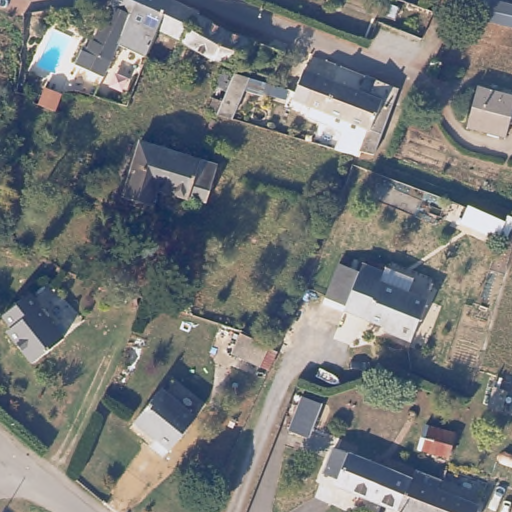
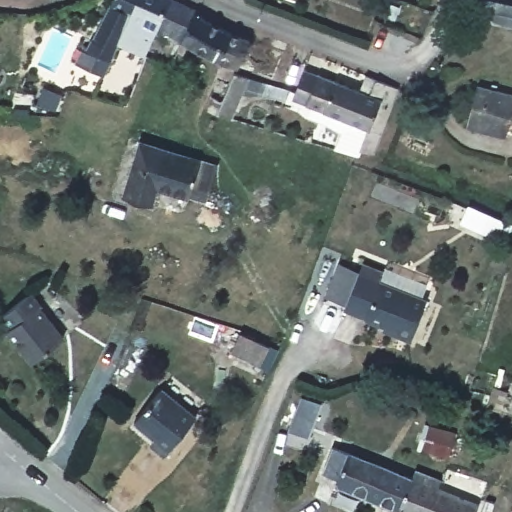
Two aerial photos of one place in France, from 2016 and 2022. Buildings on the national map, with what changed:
unchanged [(135,56),(124,50),(135,23),(120,16),(95,71),(69,60),(77,43),(83,46),(102,0),(159,0),(147,30),(135,56)]
unchanged [(188,9),(173,40),(147,30),(159,0),(175,0),(189,6),(188,9)]
unchanged [(188,9),(223,26),(241,32),(230,64),(217,60),(205,54),(203,56),(173,40),(188,9)]
unchanged [(240,75),(257,81),(253,93),(235,86),(222,116),(208,111),(201,108),(204,99),(199,95),(213,68),(225,75),(227,69),(240,75)]
unchanged [(366,89),(371,73),(404,85),(380,151),(366,146),(363,154),(354,151),(349,150),(345,149),(350,131),(335,123),(316,116),(319,106),(300,99),(303,90),(303,89),(310,68),(366,89)]
unchanged [(67,88),(67,89),(60,102),(45,94),(52,80),(67,88)]
unchanged [(512,97),(508,109),(512,110),(512,119),(511,122),(503,120),(498,135),(463,124),(476,83),(512,95),(512,97)]
unchanged [(207,156),(198,192),(179,187),(179,190),(147,182),(142,199),(114,190),(128,134),(207,156)]
unchanged [(492,220),(489,230),(472,225),(471,227),(462,224),(466,211),(492,220)]
unchanged [(407,325),(409,321),(377,311),(356,304),(357,300),(336,293),(346,258),(368,265),(370,257),(393,263),(390,273),(437,288),(423,329),(407,325)]
unchanged [(33,304),(31,306),(60,334),(31,363),(2,335),(7,330),(0,323),(0,316),(22,293),(33,304)]
unchanged [(273,347),(265,366),(237,354),(245,335),(273,347)]
unchanged [(512,395),(508,408),(494,404),(504,371),(512,373),(512,395)]
unchanged [(190,411),(160,452),(147,442),(151,437),(129,420),(155,385),(190,411)]
unchanged [(320,403),(309,434),(290,427),(301,396),(320,403)]
unchanged [(456,432),(448,455),(417,443),(425,421),(456,432)]
unchanged [(400,509),(331,482),(333,475),(319,469),(330,443),(412,476),(400,509)]
unchanged [(417,465),(445,475),(441,486),(478,501),(474,512),(409,512),(400,509),(412,476),(417,465)]

